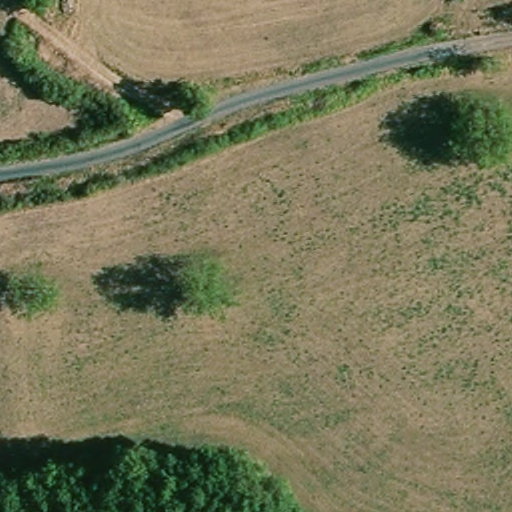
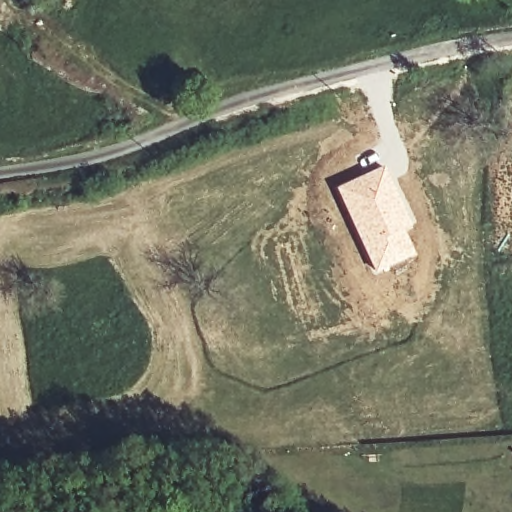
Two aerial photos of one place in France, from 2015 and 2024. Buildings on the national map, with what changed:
new [(384,165),(398,185),(418,224),(405,231),(416,255),(374,275),(334,187),(384,165)]

